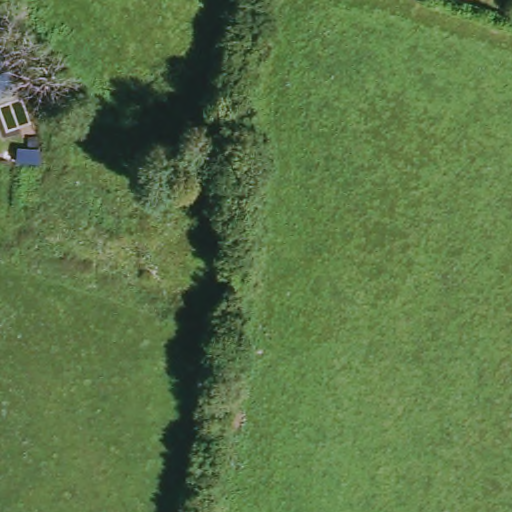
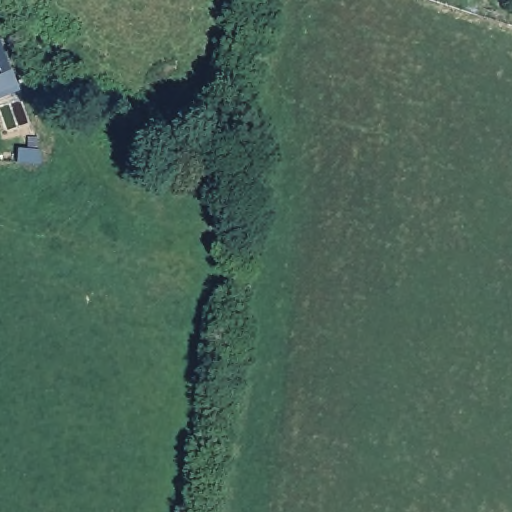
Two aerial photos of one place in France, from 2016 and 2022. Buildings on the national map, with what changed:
unchanged [(8,86),(0,89),(0,68),(2,68),(8,86)]

